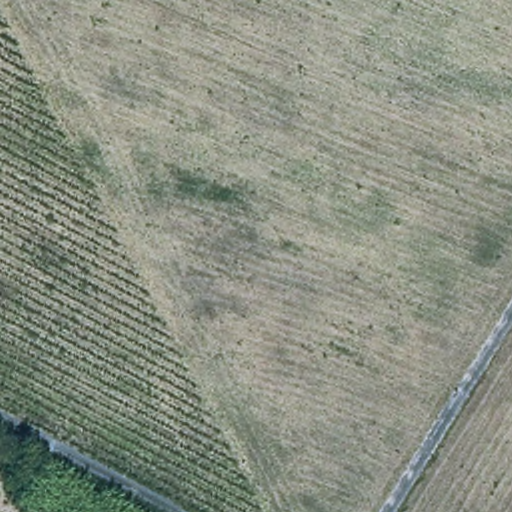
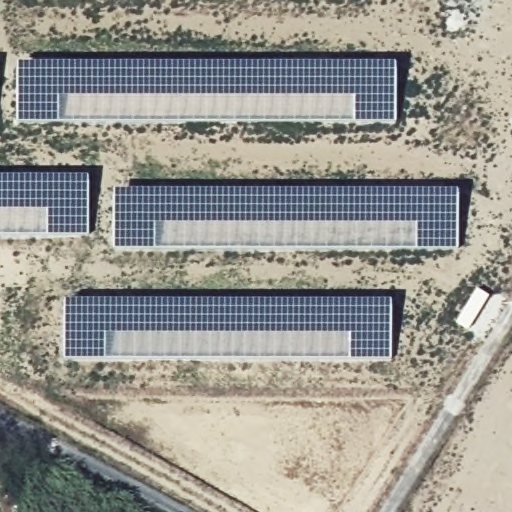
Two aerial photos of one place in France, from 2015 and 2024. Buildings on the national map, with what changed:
new [(35,60),(397,61),(397,124),(245,122),(15,123),(13,65),(35,60)]
new [(89,175),(90,236),(0,236),(0,175),(89,175)]
new [(135,188),(460,189),(459,250),(235,249),(112,251),(112,190),(135,188)]
new [(477,285),(492,295),(468,330),(455,322),(477,285)]
new [(392,299),(392,360),(177,358),(63,359),(62,299),(392,299)]

